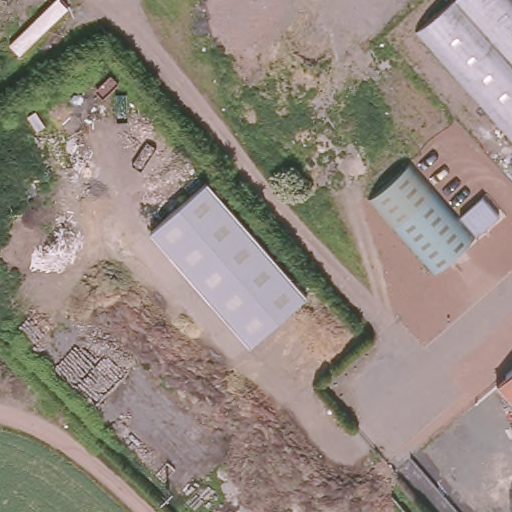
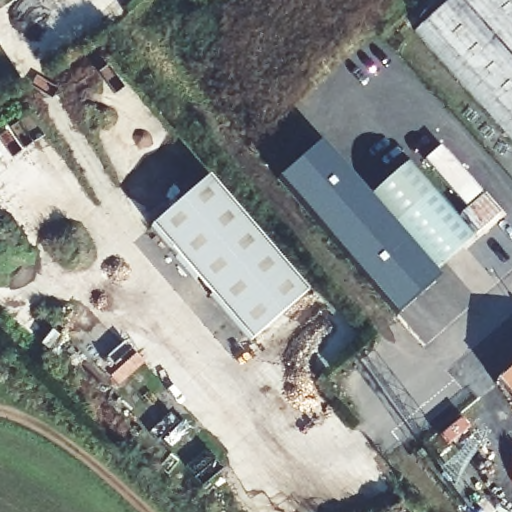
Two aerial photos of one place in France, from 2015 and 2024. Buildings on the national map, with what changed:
unchanged [(512,144),(416,36),(456,0),(512,0),(512,144)]
new [(275,182),(318,145),(437,281),(395,318),(275,182)]
unchanged [(410,159),(475,232),(435,268),(372,194),(410,159)]
unchanged [(457,210),(480,190),(499,210),(476,231),(457,210)]
unchanged [(208,193),(307,302),(250,353),(153,242),(208,193)]
unchanged [(512,367),(512,400),(496,382),(512,367)]

